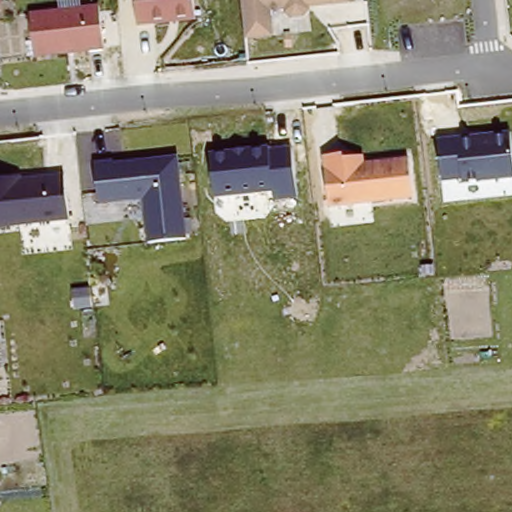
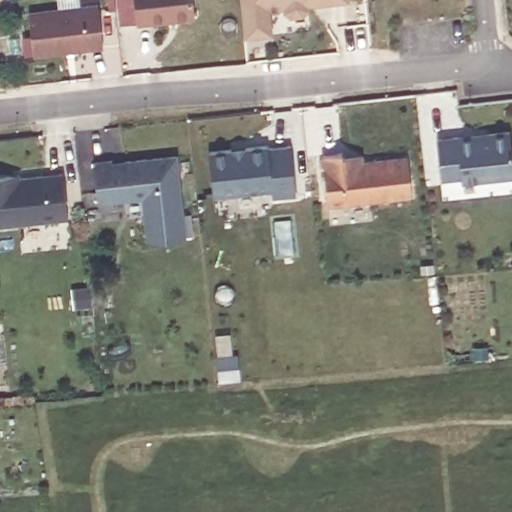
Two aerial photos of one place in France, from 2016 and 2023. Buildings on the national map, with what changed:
unchanged [(136,24),(133,0),(195,0),(197,17),(136,24)]
unchanged [(309,6),(309,10),(303,16),(291,16),(283,13),(283,8),(271,10),(274,36),(245,39),(240,0),(350,0),(351,2),(309,6)]
unchanged [(101,2),(105,48),(32,57),(27,10),(101,2)]
unchanged [(512,147),(512,176),(441,180),(435,136),(510,128),(512,147)]
unchanged [(293,144),(298,197),(274,200),(273,192),(216,196),(213,151),(293,144)]
unchanged [(178,153),(188,237),(147,243),(142,199),(97,203),(93,159),(178,153)]
unchanged [(364,153),(366,160),(409,156),(414,197),(328,207),(322,154),(364,153)]
unchanged [(64,172),(69,219),(0,226),(0,177),(64,172)]

